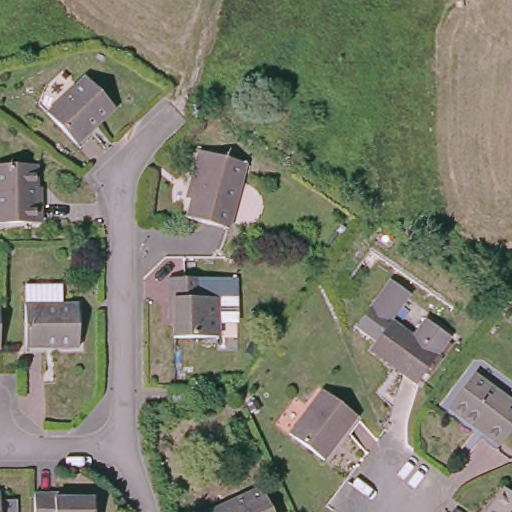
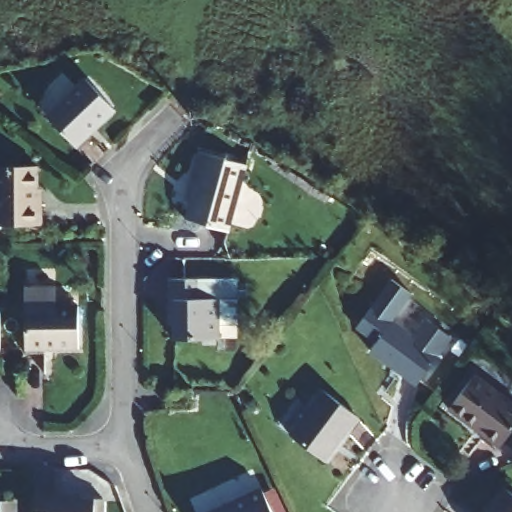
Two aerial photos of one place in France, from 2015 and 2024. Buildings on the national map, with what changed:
unchanged [(45,112),(82,75),(111,105),(75,142),(45,112)]
unchanged [(245,159),(227,223),(185,213),(190,195),(183,192),(190,167),(197,147),(245,159)]
unchanged [(40,199),(40,215),(0,218),(0,163),(36,161),(36,199),(40,199)]
unchanged [(234,268),(234,290),(213,290),(213,328),(170,329),(170,310),(165,310),(165,270),(234,268)]
unchanged [(59,291),(59,307),(76,307),(75,347),(24,351),(24,293),(59,291)]
unchanged [(372,348),(355,336),(354,334),(355,332),(383,298),(402,312),(388,328),(409,343),(421,327),(446,346),(411,390),(366,357),(372,348)]
unchanged [(512,404),(512,429),(500,446),(444,406),(469,373),(512,404)]
unchanged [(350,416),(315,458),(280,432),(315,390),(350,416)]
unchanged [(181,392),(181,408),(159,410),(159,392),(181,392)]
unchanged [(70,489),(87,488),(87,512),(30,512),(30,486),(70,483),(70,489)]
unchanged [(512,490),(512,512),(482,512),(505,484),(512,490)]
unchanged [(271,512),(205,512),(260,488),(271,512)]

